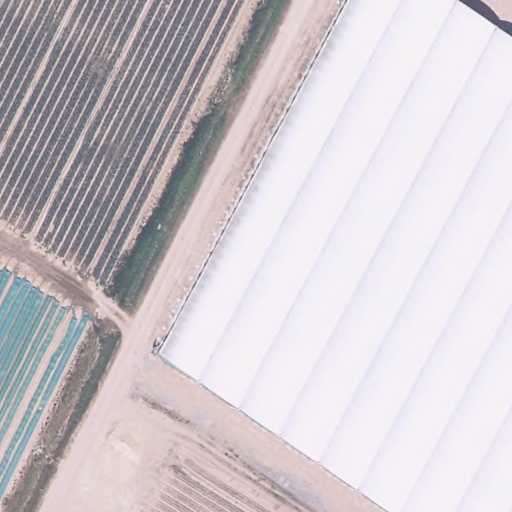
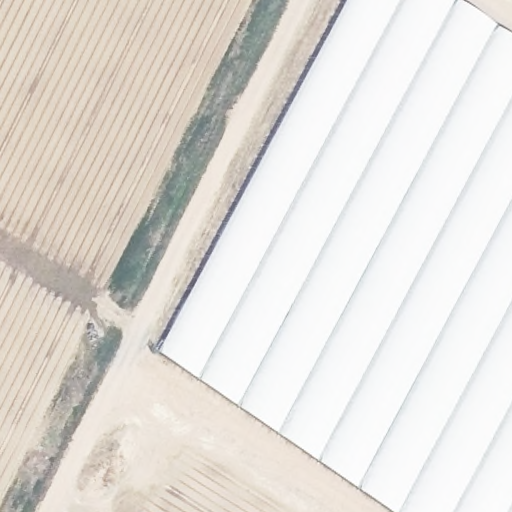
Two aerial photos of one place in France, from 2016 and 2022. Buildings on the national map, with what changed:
unchanged [(160,356),(350,0),(456,0),(512,38),(512,512),(391,512),(160,356)]

